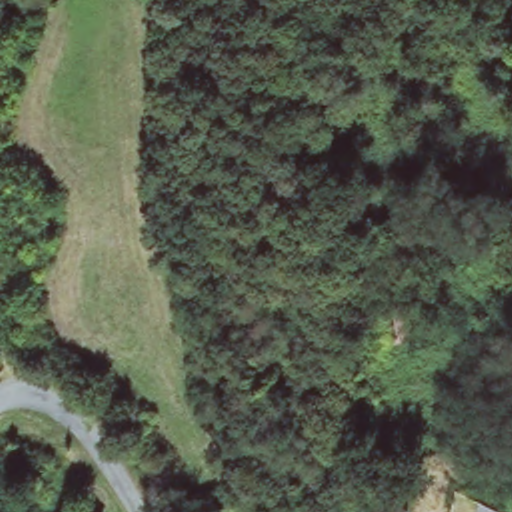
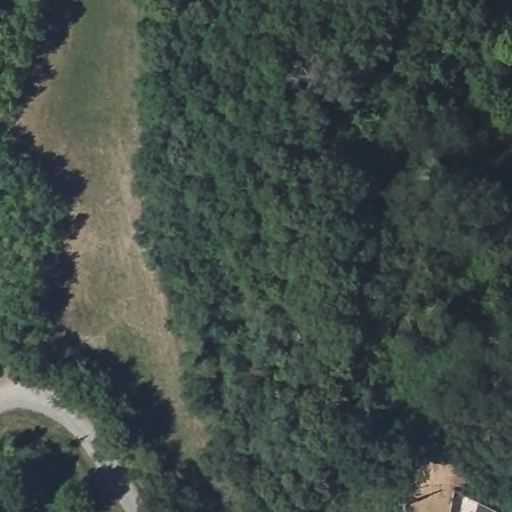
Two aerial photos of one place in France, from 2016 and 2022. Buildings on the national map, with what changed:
unchanged [(406,317),(419,317),(419,345),(391,345),(391,317),(406,317)]

